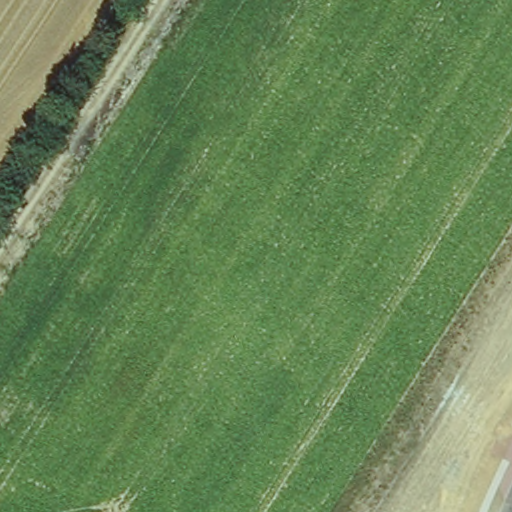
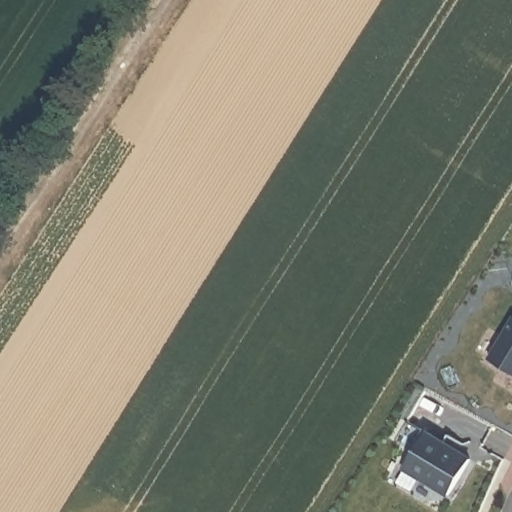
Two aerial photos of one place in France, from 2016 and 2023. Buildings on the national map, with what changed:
new [(512,373),(488,359),(512,320),(512,373)]
new [(423,433),(467,460),(446,495),(401,468),(423,433)]

